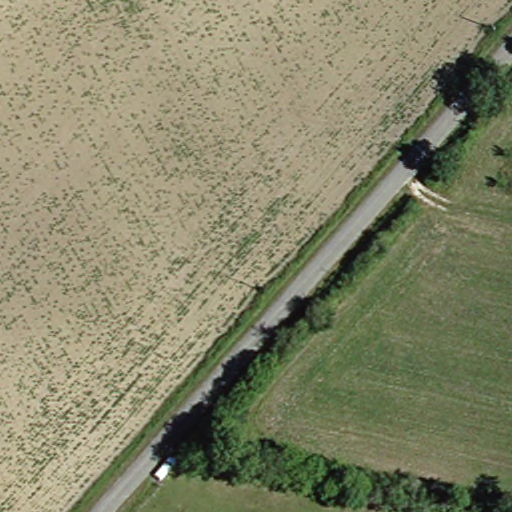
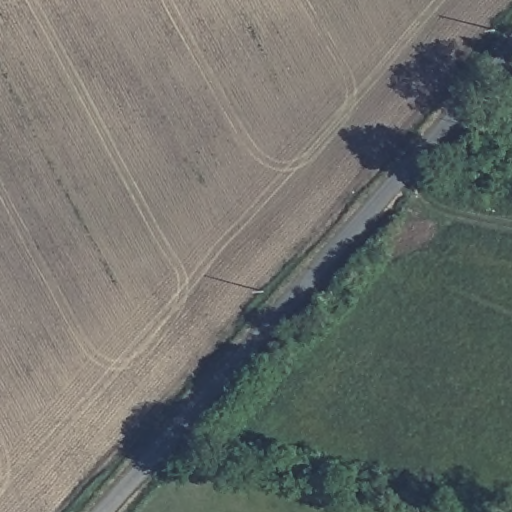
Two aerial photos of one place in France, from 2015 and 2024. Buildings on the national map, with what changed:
[]

